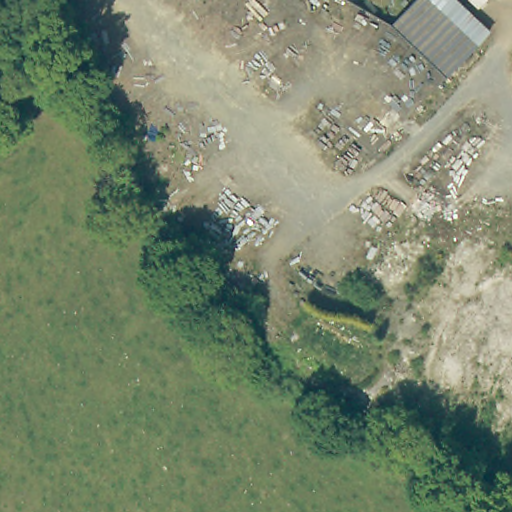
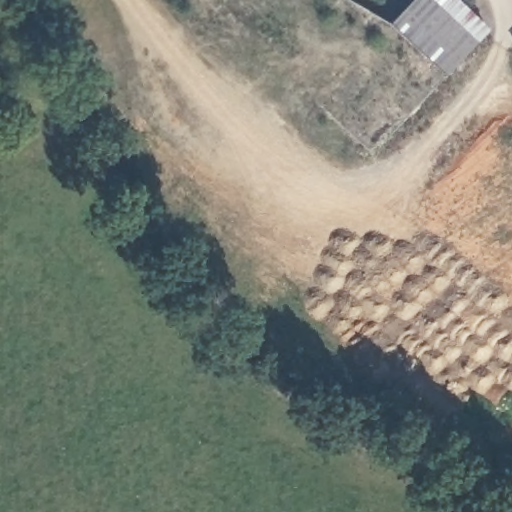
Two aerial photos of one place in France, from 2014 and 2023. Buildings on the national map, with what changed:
unchanged [(398,13),(411,0),(452,0),(483,30),(445,69),(398,13)]

